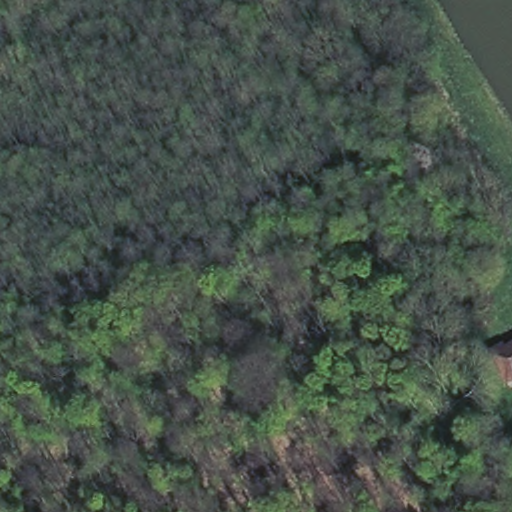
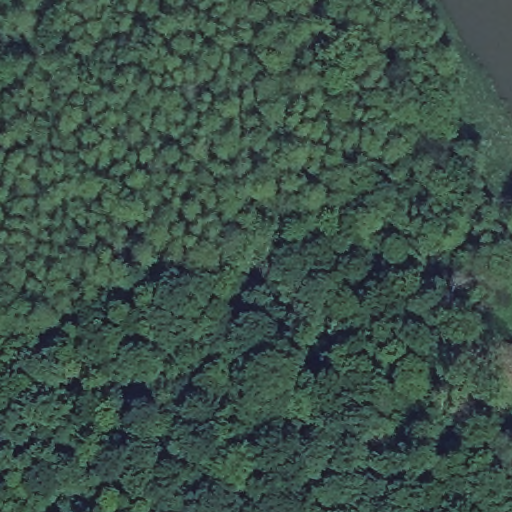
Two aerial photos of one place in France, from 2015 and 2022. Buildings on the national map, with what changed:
unchanged [(509,395),(480,365),(512,351),(512,393),(509,395)]

